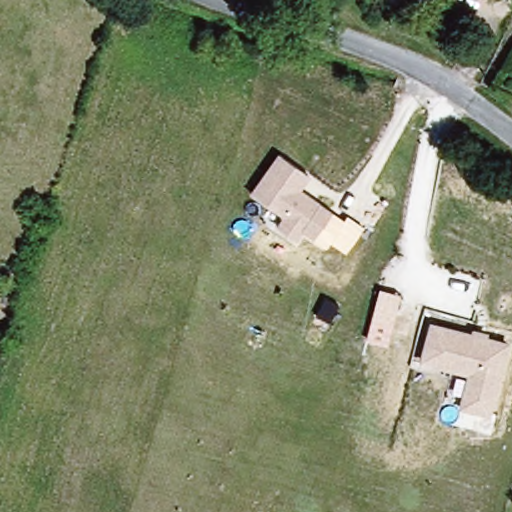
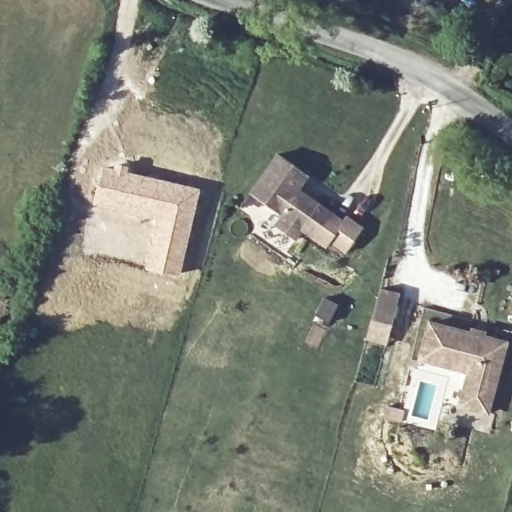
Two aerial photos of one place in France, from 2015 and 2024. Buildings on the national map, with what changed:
unchanged [(312,176),(302,190),(334,211),(313,240),(302,232),(294,241),(275,226),(282,216),(250,194),(278,154),(312,176)]
new [(104,164),(201,188),(181,276),(85,249),(104,164)]
unchanged [(469,331),(471,326),(489,331),(487,336),(508,341),(490,417),(457,407),(465,376),(417,363),(427,321),(469,331)]

